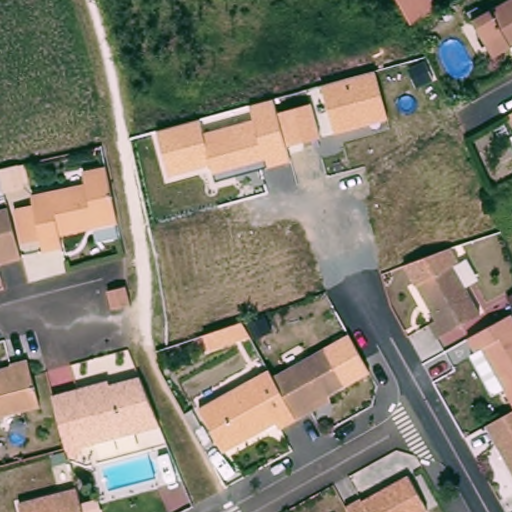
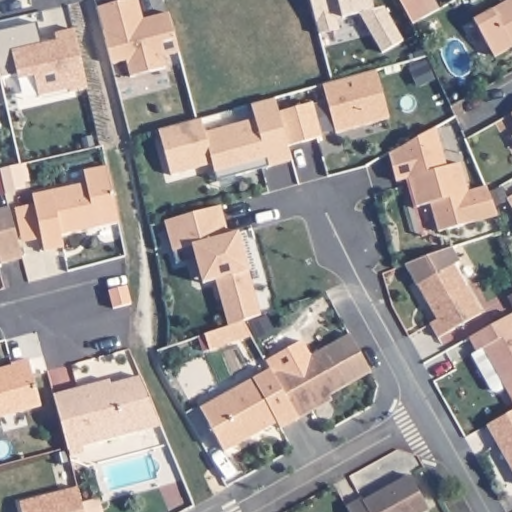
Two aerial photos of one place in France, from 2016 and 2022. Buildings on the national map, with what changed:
new [(150,18),(167,13),(179,53),(163,57),(166,68),(130,78),(126,61),(112,65),(97,8),(128,0),(137,0),(142,20),(150,18)]
new [(382,8),(402,43),(382,55),(358,14),(336,20),(338,30),(319,35),(310,0),(369,0),(372,11),(382,8)]
unchanged [(433,0),(438,9),(412,24),(398,0),(433,0)]
unchanged [(478,19),(512,0),(512,50),(500,57),(478,19)]
new [(37,23),(42,45),(57,42),(55,34),(74,30),(88,89),(69,94),(69,91),(39,97),(34,77),(18,81),(17,77),(1,80),(0,78),(0,32),(37,23)]
unchanged [(322,86),(376,72),(388,119),(335,133),(322,86)]
new [(1,82),(0,82),(0,78),(1,82)]
unchanged [(286,146),(290,161),(216,182),(211,164),(169,175),(157,131),(200,120),(204,133),(252,119),(249,105),(273,98),(276,110),(286,146)]
unchanged [(312,100),(323,138),(286,146),(276,110),(312,100)]
new [(435,128),(446,166),(461,162),(470,191),(485,187),(496,216),(437,232),(430,202),(415,207),(407,179),(396,181),(388,153),(435,128)]
unchanged [(60,232),(62,244),(45,248),(32,192),(86,180),(84,168),(107,163),(119,219),(96,224),(82,227),(60,232)]
unchanged [(20,166),(25,165),(29,183),(24,184),(24,187),(7,191),(2,170),(3,170),(20,166)]
unchanged [(20,243),(22,255),(1,260),(0,256),(0,206),(10,204),(20,243)]
unchanged [(42,238),(22,242),(15,209),(35,204),(42,238)]
new [(247,271),(261,314),(242,320),(227,325),(215,280),(201,283),(194,256),(175,261),(164,222),(221,205),(228,235),(237,232),(247,271)]
unchanged [(417,285),(402,262),(452,244),(461,260),(453,265),(417,285)]
unchanged [(417,285),(453,265),(481,314),(437,339),(430,325),(437,321),(427,302),(417,285)]
unchanged [(129,304),(112,309),(107,292),(125,287),(129,304)]
unchanged [(510,388),(502,392),(497,391),(477,355),(481,353),(473,338),(512,317),(512,393),(511,390),(510,388)]
new [(220,328),(242,320),(242,322),(250,335),(225,343),(208,349),(202,333),(219,328),(220,328)]
demolished [(242,320),(242,322),(250,335),(225,343),(220,328),(242,320)]
unchanged [(317,406),(302,414),(278,372),(330,343),(349,333),(369,370),(351,380),(333,390),(336,395),(317,406)]
unchanged [(12,369),(11,364),(27,359),(40,406),(0,417),(0,373),(12,369)]
unchanged [(220,395),(273,364),(278,372),(302,414),(285,424),(281,418),(228,447),(212,419),(203,404),(220,395)]
unchanged [(100,389),(114,385),(115,390),(147,381),(152,398),(166,431),(72,456),(72,453),(58,400),(100,389)]
unchanged [(512,464),(491,426),(512,414),(512,464)]
unchanged [(366,499),(367,501),(413,476),(433,511),(431,512),(353,512),(351,507),(366,499)]
unchanged [(19,503),(77,488),(80,497),(82,504),(96,500),(99,512),(21,512),(19,503)]

